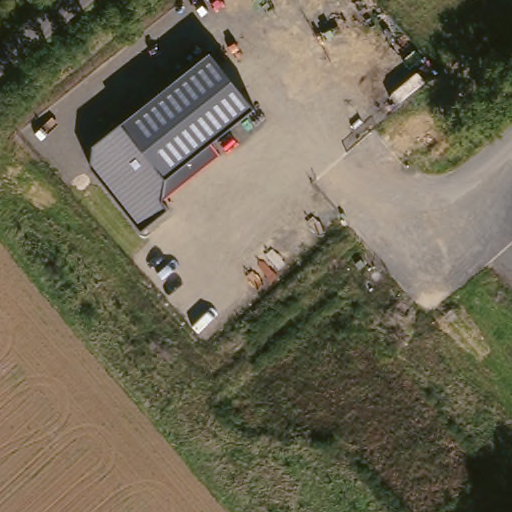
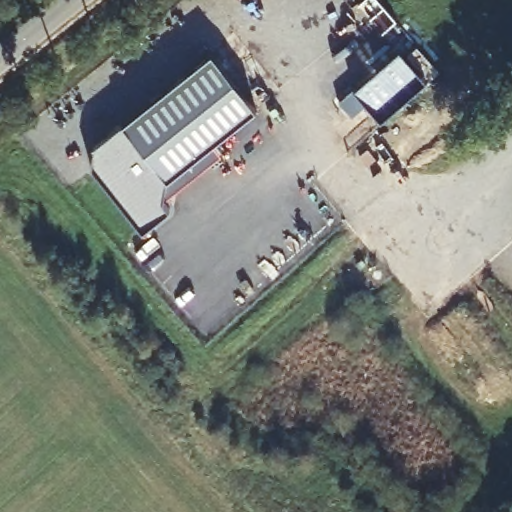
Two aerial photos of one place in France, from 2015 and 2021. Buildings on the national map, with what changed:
new [(399,52),(428,83),(382,125),(367,109),(352,122),(338,107),(354,94),(399,52)]
unchanged [(210,144),(218,155),(161,199),(168,209),(141,228),(91,165),(94,146),(210,54),(254,108),(210,144)]

